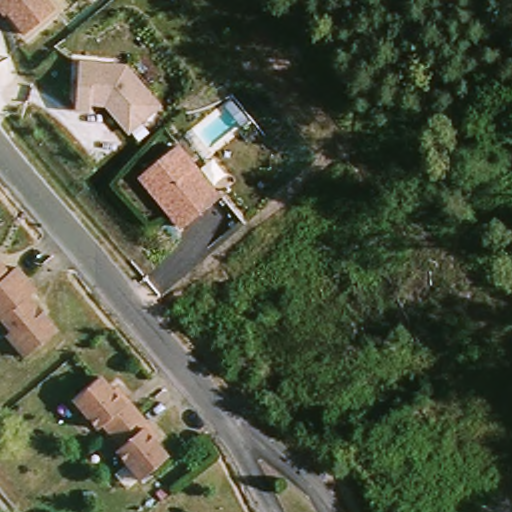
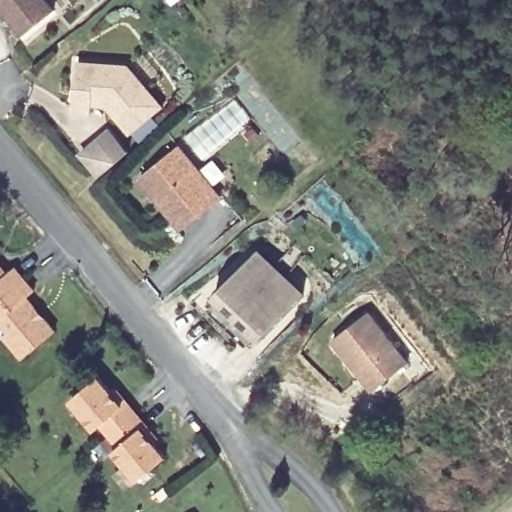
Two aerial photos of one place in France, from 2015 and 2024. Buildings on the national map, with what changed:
unchanged [(25,37),(0,6),(0,0),(44,0),(54,12),(25,37)]
unchanged [(108,107),(93,105),(92,114),(74,112),(78,59),(127,65),(165,106),(130,134),(108,107)]
new [(110,129),(130,152),(116,162),(100,176),(81,152),(97,140),(110,129)]
unchanged [(220,197),(182,228),(141,179),(180,147),(220,197)]
new [(213,297),(253,255),(270,272),(282,259),(293,270),(280,282),(298,300),(258,341),(255,337),(246,347),(207,310),(216,300),(213,297)]
unchanged [(0,299),(0,272),(5,277),(15,268),(25,279),(0,299)]
unchanged [(5,336),(10,332),(0,321),(0,299),(25,279),(35,291),(24,300),(40,321),(44,318),(55,332),(24,358),(5,336)]
new [(407,363),(375,389),(333,341),(366,313),(407,363)]
unchanged [(105,439),(96,429),(91,433),(81,421),(84,418),(70,402),(94,382),(113,405),(117,402),(131,417),(105,439)]
unchanged [(146,435),(141,439),(160,462),(137,482),(125,467),(121,469),(110,456),(115,452),(105,439),(131,417),(146,435)]

